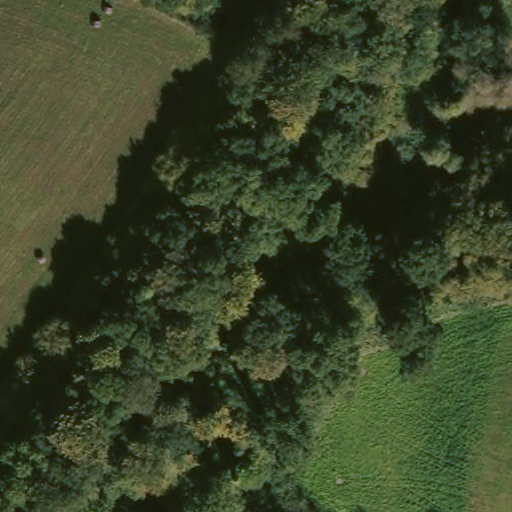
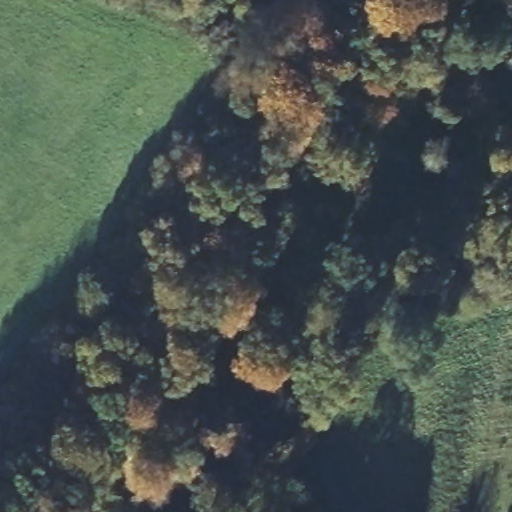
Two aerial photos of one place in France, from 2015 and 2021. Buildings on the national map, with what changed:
[]

